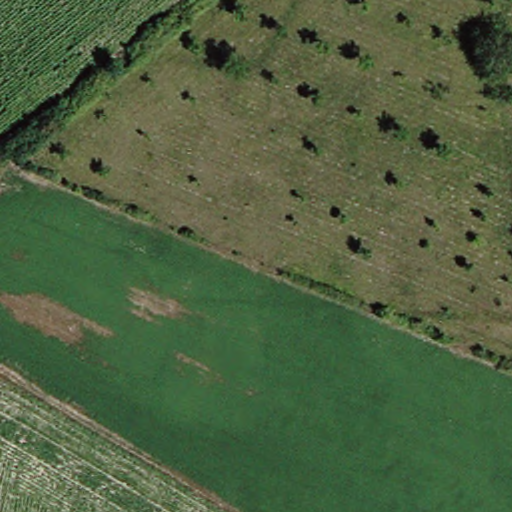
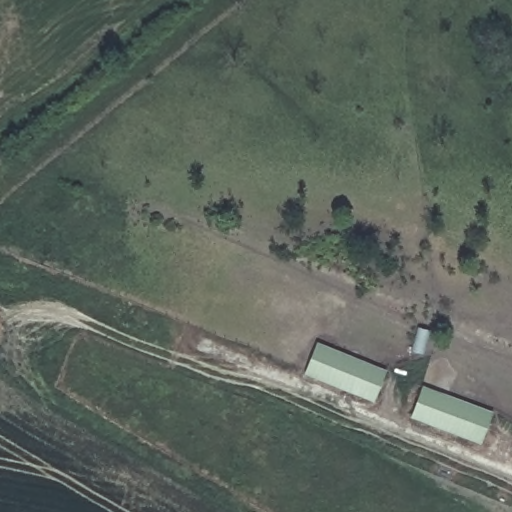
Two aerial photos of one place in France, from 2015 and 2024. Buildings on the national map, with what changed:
new [(374,403),(305,373),(318,342),(387,371),(380,388),(374,403)]
new [(493,415),(480,445),(410,416),(423,385),(493,415)]

